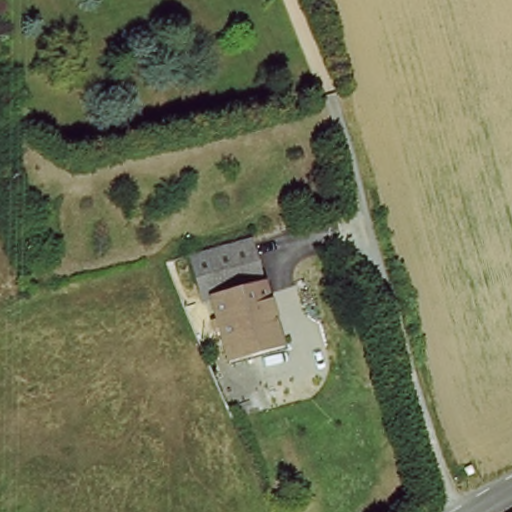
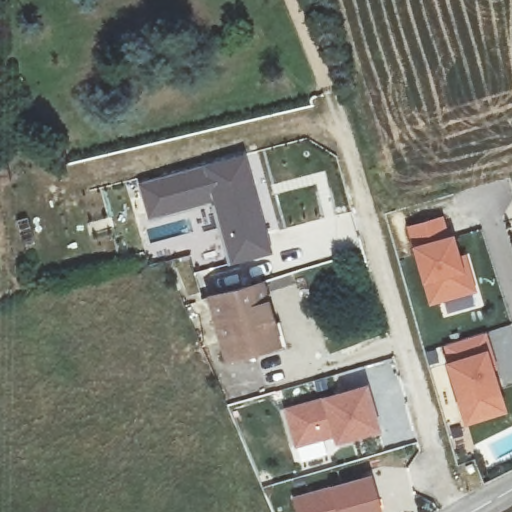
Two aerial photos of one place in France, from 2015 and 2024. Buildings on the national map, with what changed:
new [(245,156),(270,251),(228,263),(214,204),(151,221),(141,186),(245,156)]
new [(446,215),(451,235),(455,233),(463,262),(470,261),(477,292),(430,306),(424,285),(414,247),(408,227),(446,215)]
demolished [(286,342),(233,356),(217,294),(208,297),(196,249),(238,240),(258,235),(286,342)]
new [(266,280),(281,347),(225,362),(208,296),(266,280)]
new [(461,408),(448,362),(444,347),(486,333),(489,350),(502,396),(506,409),(466,423),(461,408)]
new [(325,397),(368,383),(384,432),(335,447),(332,436),(295,450),(284,408),(325,397)]
new [(372,475),(383,512),(299,512),(295,496),(331,487),(372,475)]

